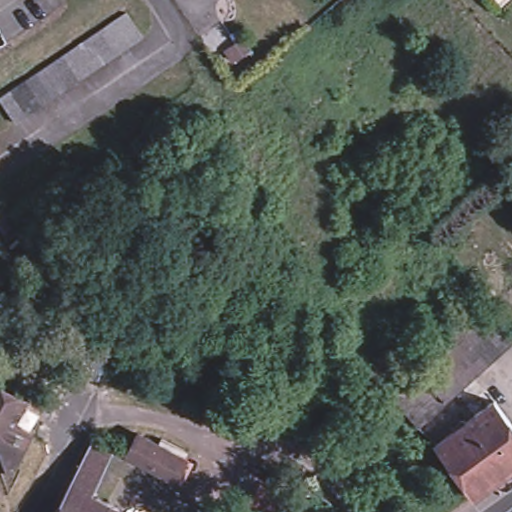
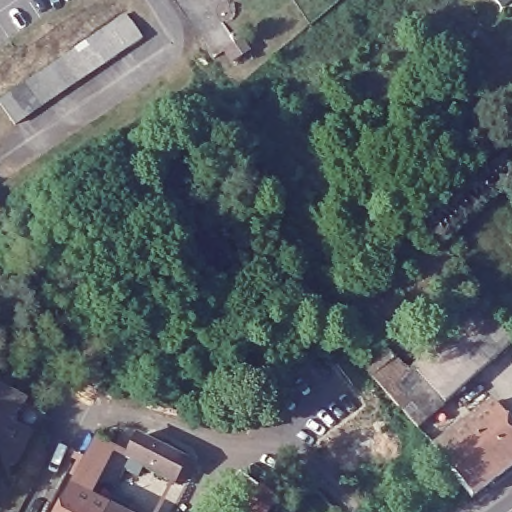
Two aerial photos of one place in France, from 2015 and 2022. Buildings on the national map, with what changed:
unchanged [(28,81),(40,72),(54,64),(66,55),(79,46),(92,38),(104,30),(117,21),(130,12),(147,36),(134,46),(120,54),(109,63),(95,71),(82,80),(70,89),(57,97),(45,106),(30,116),(17,124),(1,99),(14,91),(28,81)]
unchanged [(170,160),(186,146),(190,152),(174,165),(170,160)]
unchanged [(420,373),(412,370),(465,322),(458,314),(477,298),(484,306),(512,336),(512,345),(448,404),(420,373)]
unchanged [(375,376),(367,367),(389,348),(398,357),(412,370),(420,373),(448,404),(420,429),(375,376)]
unchanged [(3,473),(5,481),(4,481),(0,468),(0,398),(12,404),(14,412),(35,422),(10,471),(3,473)]
unchanged [(492,408),(512,435),(512,471),(470,503),(432,453),(492,408)]
unchanged [(177,483),(149,468),(150,466),(137,459),(130,455),(140,435),(188,460),(177,483)]
unchanged [(111,506),(71,485),(96,437),(130,455),(137,459),(111,506)]
unchanged [(111,506),(122,512),(57,512),(71,485),(111,506)]
unchanged [(257,491),(274,504),(268,512),(241,512),(257,492),(257,491)]

